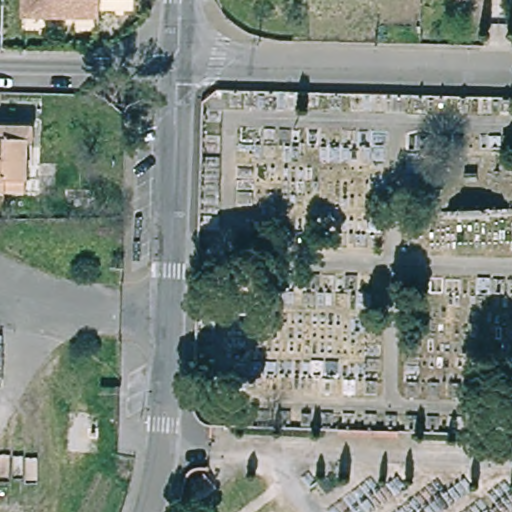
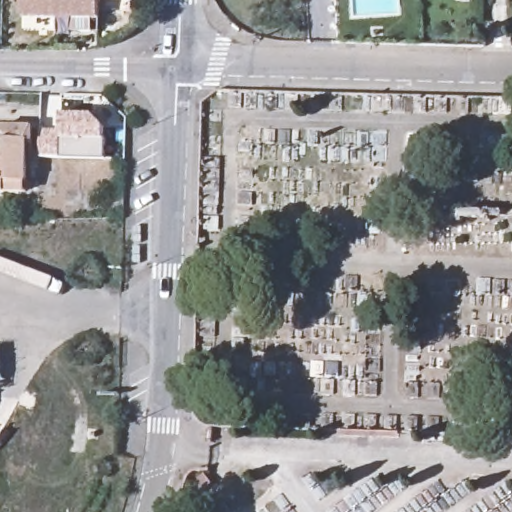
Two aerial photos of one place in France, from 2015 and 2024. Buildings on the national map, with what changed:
unchanged [(23,19),(23,0),(100,0),(100,21),(23,19)]
unchanged [(100,0),(134,0),(134,1),(100,0)]
new [(40,130),(61,129),(61,114),(93,114),(105,126),(104,140),(104,160),(39,156),(40,130)]
unchanged [(0,190),(0,126),(34,127),(33,141),(27,140),(26,182),(26,191),(5,190),(0,190)]
unchanged [(219,494),(210,498),(204,484),(214,481),(219,494)]

